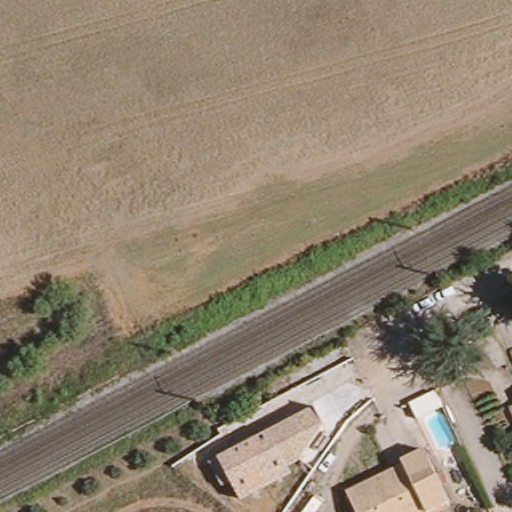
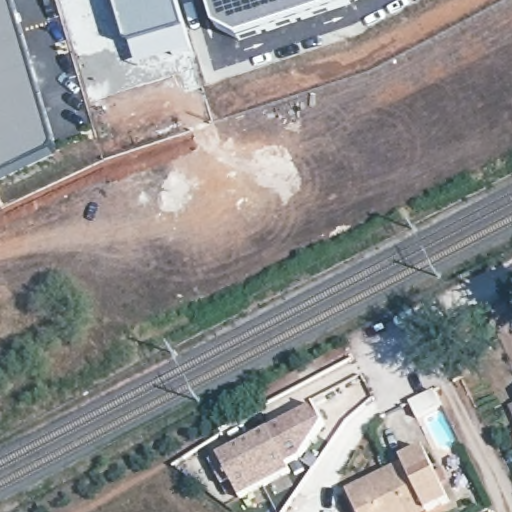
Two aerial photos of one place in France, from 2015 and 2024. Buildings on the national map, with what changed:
new [(50,121),(57,150),(0,179),(0,0),(13,0),(50,121)]
new [(186,30),(128,46),(117,15),(113,0),(178,0),(186,30)]
new [(356,1),(239,41),(217,30),(215,27),(206,0),(359,0),(356,1)]
new [(186,30),(192,51),(135,65),(128,46),(186,30)]
unchanged [(231,481),(222,486),(211,463),(220,458),(316,407),(324,422),(301,459),(287,466),(290,475),(240,499),(231,481)]
unchanged [(376,480),(380,484),(405,466),(402,460),(423,450),(452,505),(437,512),(356,512),(348,494),(376,480)]

